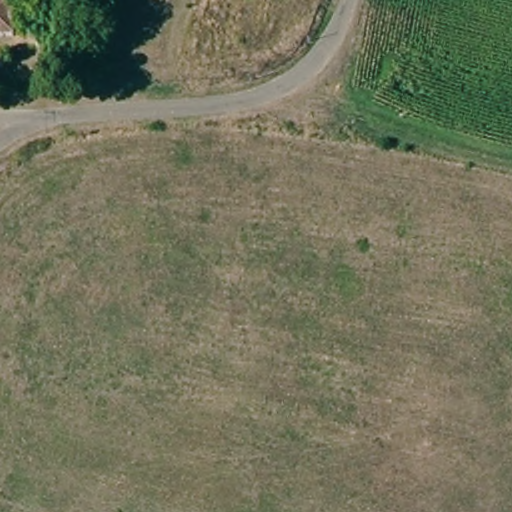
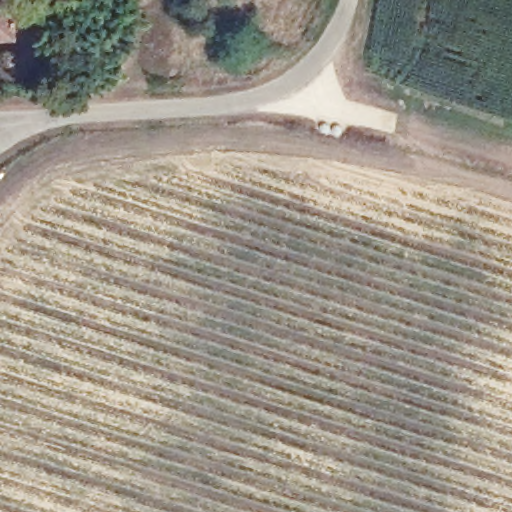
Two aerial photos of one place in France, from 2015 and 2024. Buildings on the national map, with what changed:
unchanged [(18,36),(0,37),(0,0),(16,0),(18,36)]

